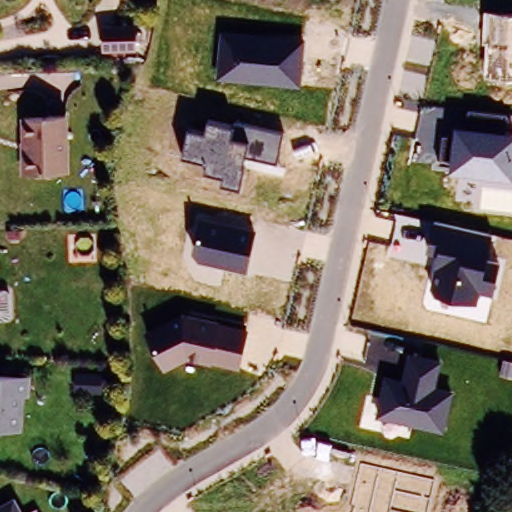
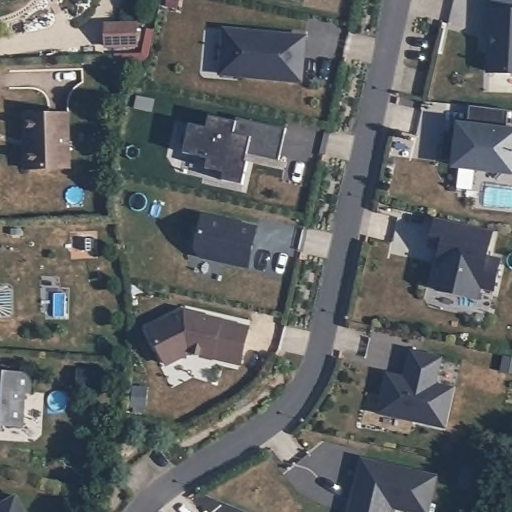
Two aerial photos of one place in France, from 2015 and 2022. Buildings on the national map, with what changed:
unchanged [(487,40),(482,41),(485,8),(512,9),(512,78),(485,76),(487,40)]
new [(135,25),(135,47),(105,48),(105,26),(135,25)]
unchanged [(303,85),(217,76),(221,29),(306,37),(303,85)]
unchanged [(439,163),(442,134),(453,134),(455,124),(465,126),(467,108),(508,112),(506,130),(512,131),(512,177),(450,169),(451,164),(439,163)]
unchanged [(61,170),(20,171),(18,116),(60,115),(61,170)]
unchanged [(277,161),(248,155),(241,185),(223,182),(225,173),(206,169),(207,160),(183,154),(189,126),(205,131),(210,117),(234,124),(235,120),(285,130),(277,161)]
unchanged [(249,271),(197,260),(192,249),(201,216),(258,226),(249,271)]
unchanged [(437,252),(425,250),(432,219),(494,231),(490,256),(502,258),(495,293),(480,291),(476,303),(430,287),(437,252)]
unchanged [(241,367),(189,357),(165,370),(145,329),(183,311),(250,327),(241,367)]
unchanged [(383,375),(402,377),(408,352),(442,359),(437,387),(455,390),(445,432),(375,417),(383,375)]
unchanged [(24,377),(23,395),(17,395),(15,429),(0,428),(0,376),(24,377)]
demolished [(403,456),(395,480),(374,473),(383,449),(403,456)]
new [(393,508),(392,512),(349,512),(361,459),(438,476),(429,512),(407,512),(393,508)]
unchanged [(9,498),(17,512),(0,512),(0,504),(9,498)]

